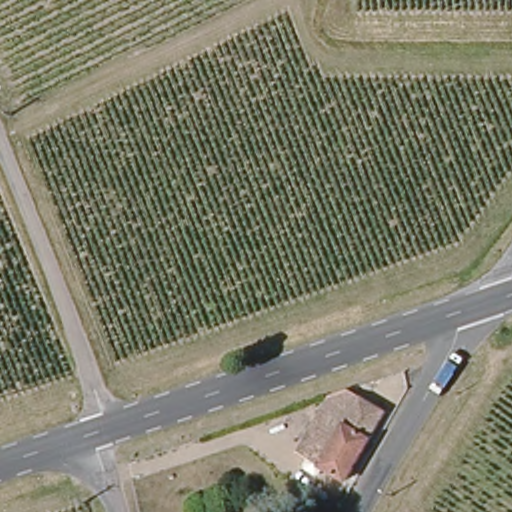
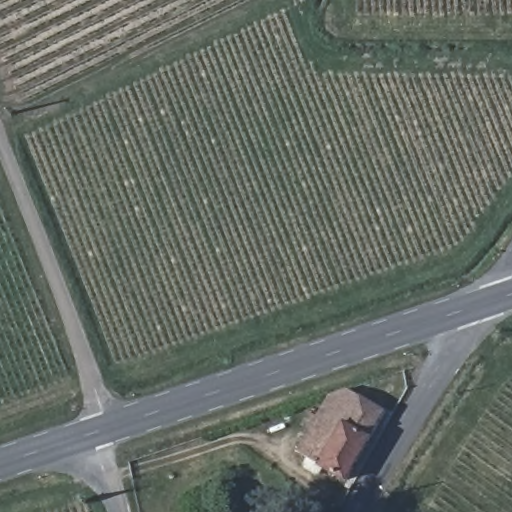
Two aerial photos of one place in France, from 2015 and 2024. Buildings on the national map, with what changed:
unchanged [(356,384),(357,383),(358,383),(390,398),(341,480),(293,447),(324,395),(325,393),(340,388),(341,389),(348,395),(356,384)]

